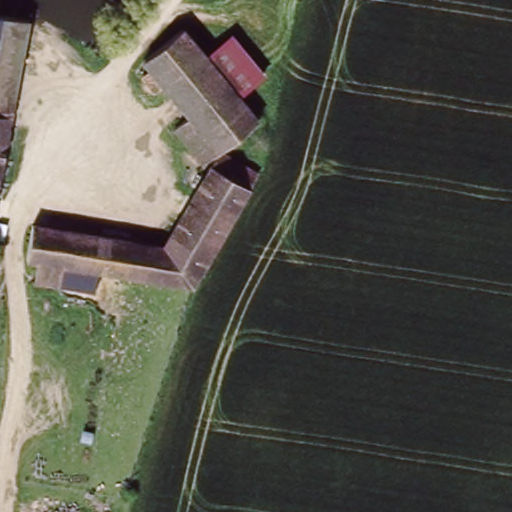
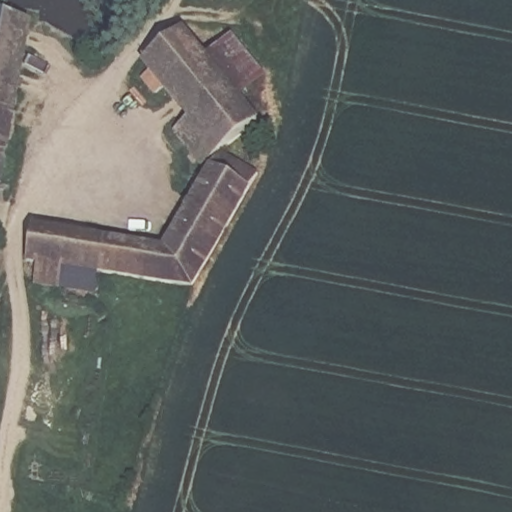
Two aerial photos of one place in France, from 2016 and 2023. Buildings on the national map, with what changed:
unchanged [(14,113),(0,111),(0,11),(31,16),(14,113)]
unchanged [(259,123),(221,151),(205,164),(176,129),(192,116),(166,85),(158,92),(138,67),(183,30),(207,60),(238,98),(259,123)]
unchanged [(207,60),(233,38),(265,77),(238,98),(207,60)]
unchanged [(0,111),(14,113),(0,194),(0,111)]
unchanged [(62,284),(37,281),(40,260),(30,259),(35,227),(166,248),(221,151),(250,190),(194,285),(100,270),(96,289),(62,284)]

